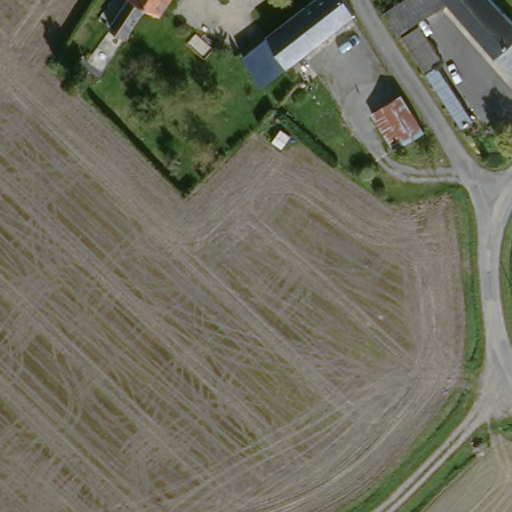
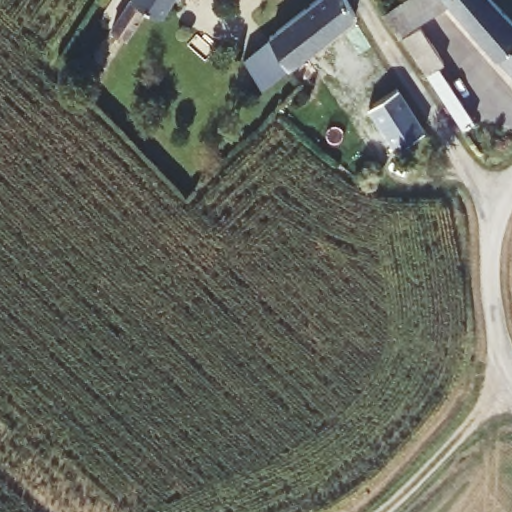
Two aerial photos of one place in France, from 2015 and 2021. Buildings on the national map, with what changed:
unchanged [(80,70),(105,38),(129,0),(165,0),(151,21),(141,16),(120,47),(93,80),(80,70)]
unchanged [(240,60),(254,51),(268,38),(320,0),(345,0),(356,18),(295,65),(286,68),(274,76),(258,88),(240,60)]
unchanged [(385,6),(396,0),(443,0),(423,13),(401,27),(385,6)]
unchanged [(508,3),(512,7),(512,57),(455,0),(504,0),(508,3)]
unchanged [(401,27),(423,13),(452,56),(445,59),(477,108),(481,114),(465,123),(401,27)]
unchanged [(424,129),(395,148),(376,113),(405,95),(424,129)]

